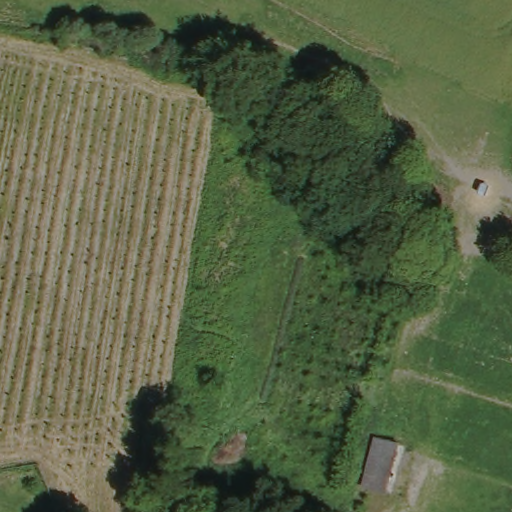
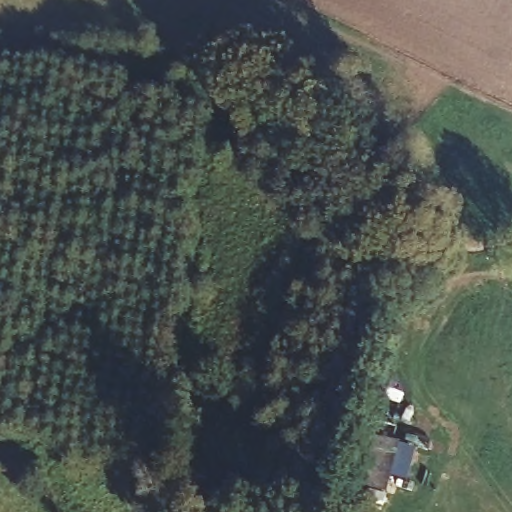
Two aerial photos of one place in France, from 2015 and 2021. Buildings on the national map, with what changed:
unchanged [(370,438),(394,443),(381,498),(359,490),(370,438)]

